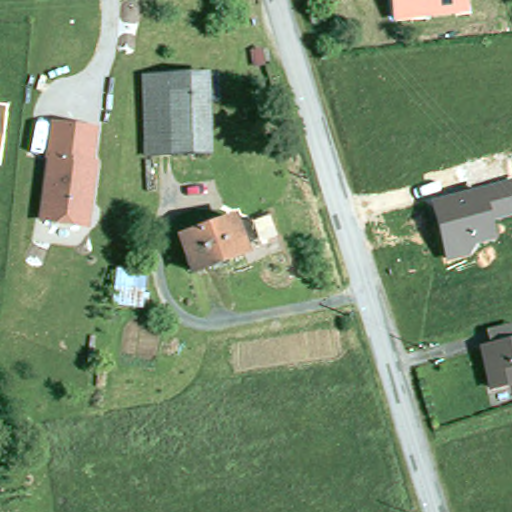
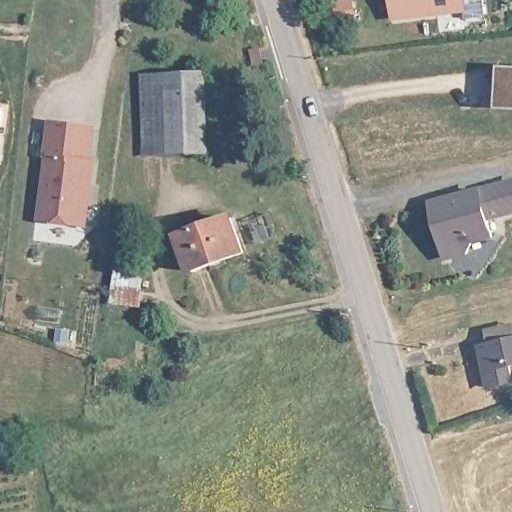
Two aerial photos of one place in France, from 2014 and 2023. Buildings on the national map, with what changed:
unchanged [(467,12),(392,20),(390,0),(466,0),(467,12)]
new [(512,110),(496,109),(499,65),(512,66),(512,110)]
unchanged [(172,76),(170,156),(145,155),(145,75),(172,76)]
unchanged [(208,77),(207,156),(170,156),(172,76),(208,77)]
unchanged [(4,116),(0,144),(0,115),(4,116)]
unchanged [(97,128),(93,161),(97,162),(88,227),(38,220),(50,122),(97,128)]
unchanged [(512,218),(492,223),(495,240),(474,246),(470,254),(445,260),(428,202),(512,182),(512,218)]
unchanged [(198,271),(186,237),(225,223),(237,218),(242,232),(250,253),(220,264),(198,271)]
unchanged [(142,305),(114,302),(117,270),(146,273),(142,305)]
unchanged [(512,384),(488,390),(479,352),(488,350),(485,335),(511,328),(512,332),(512,369),(508,369),(512,384)]

